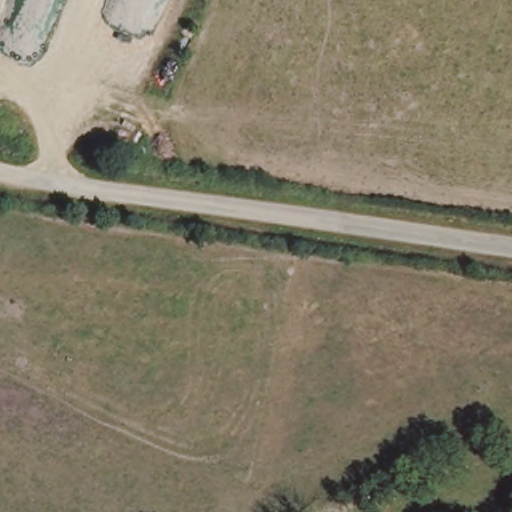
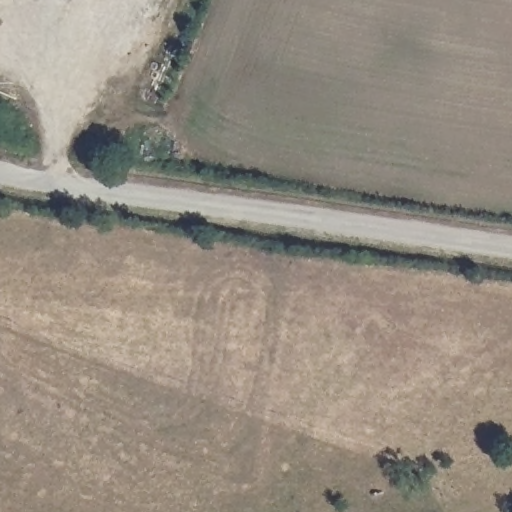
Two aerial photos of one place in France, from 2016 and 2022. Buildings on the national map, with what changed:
[]

